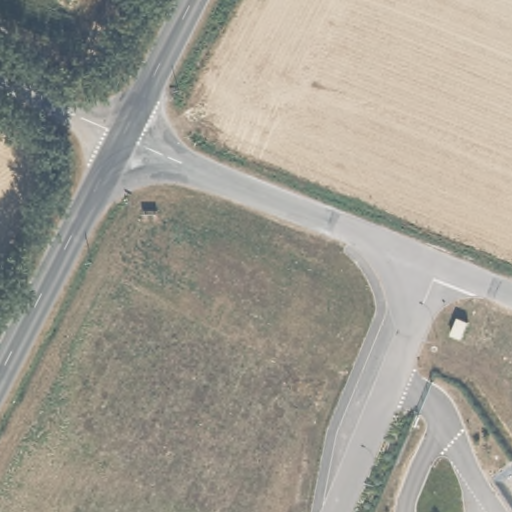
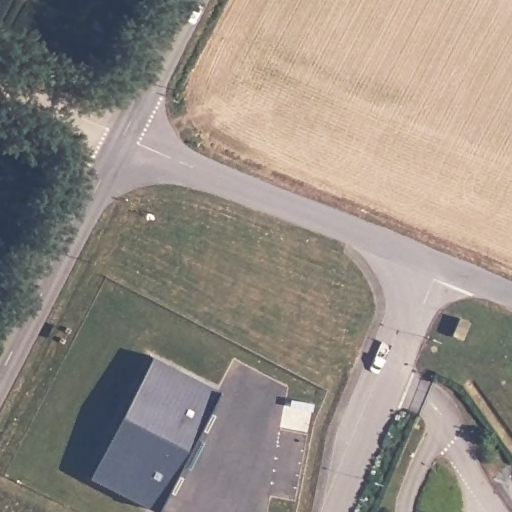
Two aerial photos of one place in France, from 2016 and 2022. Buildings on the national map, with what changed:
new [(88,477),(149,355),(217,390),(155,510),(88,477)]

